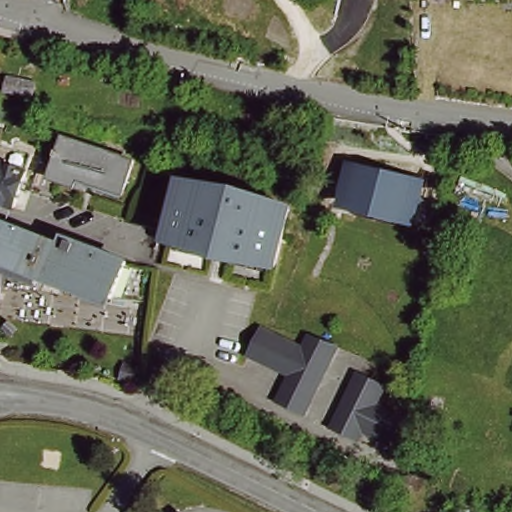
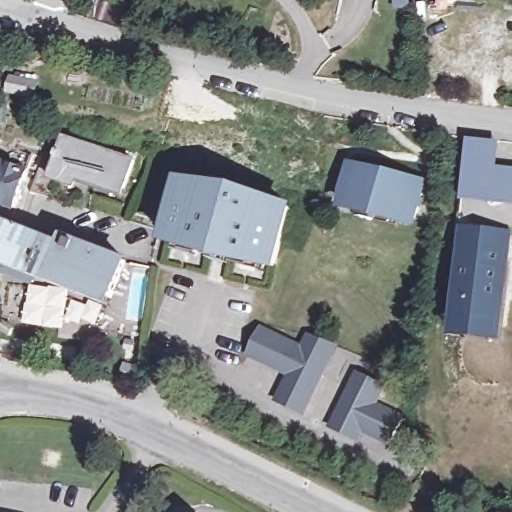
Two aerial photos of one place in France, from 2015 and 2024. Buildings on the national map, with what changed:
unchanged [(35,98),(17,94),(7,92),(11,77),(21,79),(39,83),(35,98)]
unchanged [(8,134),(10,123),(27,126),(25,136),(19,135),(8,134)]
new [(470,139),(502,142),(499,167),(512,169),(512,207),(465,201),(470,139)]
unchanged [(42,164),(57,169),(65,142),(135,165),(125,194),(91,182),(89,189),(60,180),(53,202),(31,196),(42,164)]
unchanged [(5,149),(14,153),(34,159),(29,176),(15,212),(0,207),(0,163),(5,149)]
unchanged [(355,211),(357,205),(342,202),(350,168),(423,187),(415,220),(397,215),(396,222),(355,211)]
unchanged [(289,206),(275,266),(170,240),(185,181),(289,206)]
unchanged [(8,231),(10,224),(40,236),(42,231),(70,238),(78,242),(132,261),(118,298),(43,269),(38,283),(0,269),(0,227),(8,231)]
new [(464,224),(512,231),(512,267),(505,341),(452,336),(464,224)]
unchanged [(294,375),(254,356),(256,351),(267,330),(267,329),(270,330),(307,349),(314,336),(342,347),(330,370),(309,415),(282,401),(294,375)]
unchanged [(379,382),(370,400),(397,413),(388,432),(384,440),(357,427),(352,436),(325,423),(348,377),(352,369),(379,382)]

